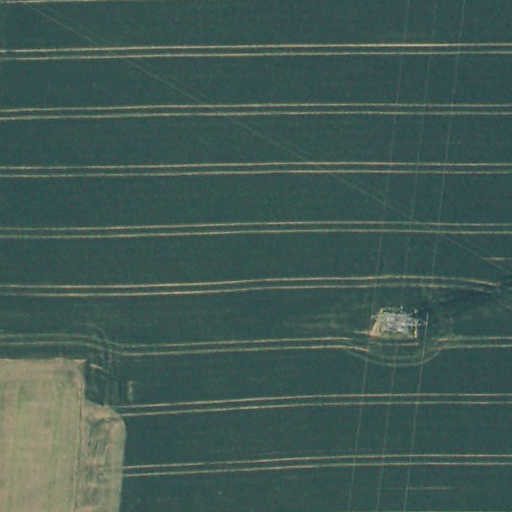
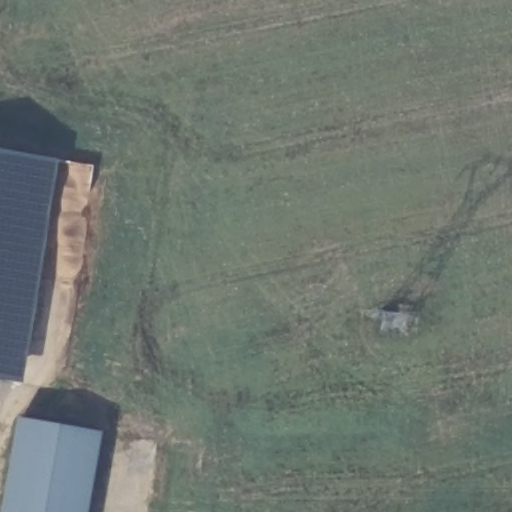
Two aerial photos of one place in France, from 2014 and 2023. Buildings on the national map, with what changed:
new [(24,383),(0,379),(0,151),(58,161),(24,383)]
new [(90,512),(2,512),(20,418),(104,433),(90,512)]

